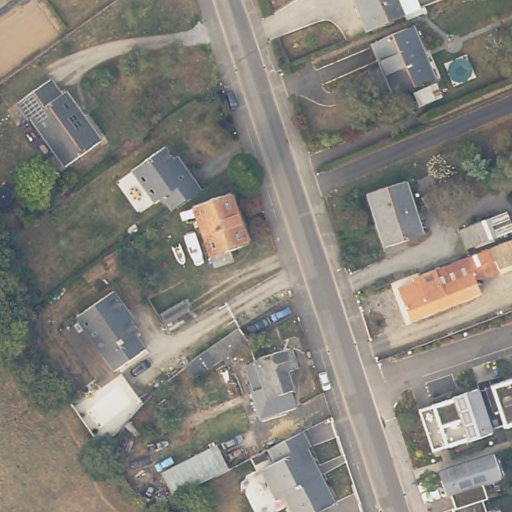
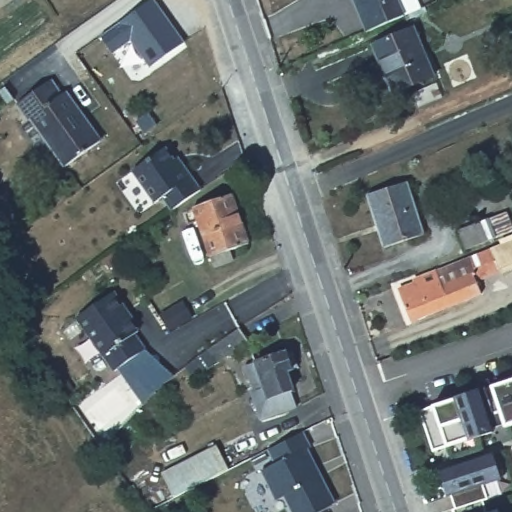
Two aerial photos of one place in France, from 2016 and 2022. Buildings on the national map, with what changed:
new [(150,65),(130,39),(112,51),(100,34),(149,0),(155,0),(182,42),(150,65)]
unchanged [(399,10),(362,26),(352,0),(415,0),(416,2),(399,10)]
unchanged [(433,74),(392,91),(384,70),(373,45),(415,27),(425,53),(433,74)]
unchanged [(59,86),(65,82),(99,131),(64,154),(30,105),(24,109),(14,95),(49,71),(59,86)]
unchanged [(150,190),(127,158),(160,135),(169,148),(173,145),(178,153),(195,177),(174,193),(166,197),(157,184),(150,190)]
unchanged [(382,238),(375,220),(365,192),(398,178),(409,206),(416,225),(382,238)]
unchanged [(246,236),(230,242),(233,251),(210,258),(195,213),(180,218),(175,202),(230,186),(246,236)]
unchanged [(506,227),(460,245),(453,227),(500,209),(506,227)]
unchanged [(408,320),(394,288),(417,278),(416,274),(467,254),(502,239),(510,260),(497,266),(494,258),(471,266),(481,291),(408,320)]
unchanged [(129,308),(127,310),(141,328),(137,331),(148,346),(118,369),(79,317),(115,289),(129,308)]
unchanged [(186,299),(195,314),(172,326),(165,310),(186,299)]
unchanged [(238,340),(242,349),(221,360),(211,365),(199,375),(190,363),(215,345),(219,342),(235,333),(238,340)]
unchanged [(297,404),(260,416),(260,414),(251,389),(254,389),(245,363),(293,346),(300,365),(288,369),(294,386),(291,387),(295,398),(297,404)]
unchanged [(512,378),(512,428),(430,450),(418,408),(512,378)]
unchanged [(308,442),(333,497),(303,512),(295,512),(283,488),(275,492),(261,463),(273,457),(265,439),(303,421),(312,439),(308,442)]
unchanged [(219,445),(230,468),(175,494),(164,471),(219,445)]
unchanged [(512,446),(512,455),(509,446),(512,446)]
unchanged [(491,482),(501,512),(449,512),(435,465),(491,452),(500,479),(491,482)]
demolished [(423,492),(425,499),(427,503),(420,505),(419,502),(416,494),(423,492)]

